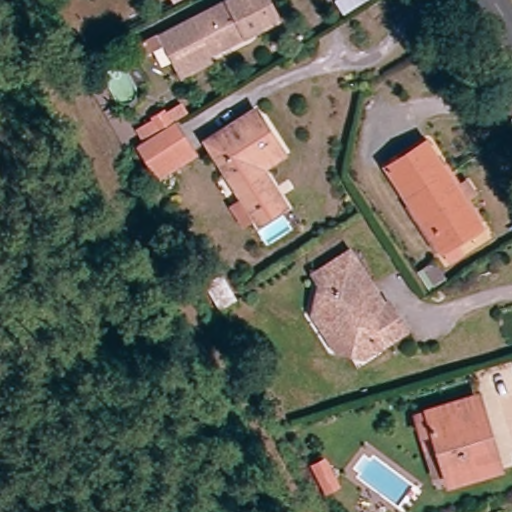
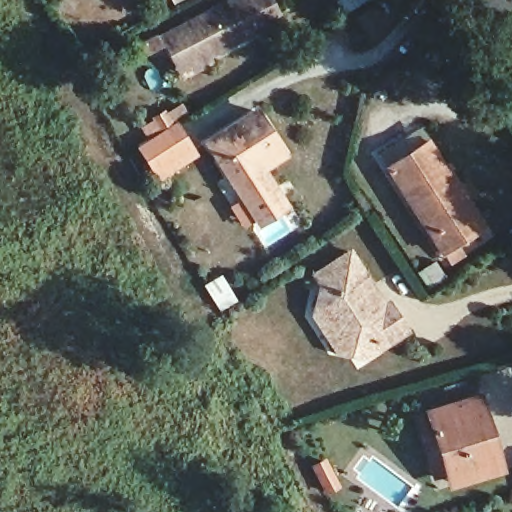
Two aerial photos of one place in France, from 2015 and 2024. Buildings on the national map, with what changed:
unchanged [(161,36),(172,30),(230,0),(275,0),(285,19),(214,55),(217,62),(184,79),(161,36)]
unchanged [(282,141),(255,159),(297,213),(262,235),(202,142),(257,108),(282,141)]
unchanged [(162,122),(179,152),(153,166),(134,139),(162,122)]
unchanged [(389,180),(434,154),(477,222),(433,249),(389,180)]
unchanged [(408,330),(377,345),(374,338),(336,351),(334,349),(327,339),(339,334),(322,309),(329,300),(313,272),(355,249),(397,314),(408,330)]
unchanged [(455,489),(452,482),(440,485),(429,442),(424,422),(486,408),(491,428),(501,471),(502,478),(455,489)]
unchanged [(320,447),(328,463),(317,469),(310,452),(320,447)]

